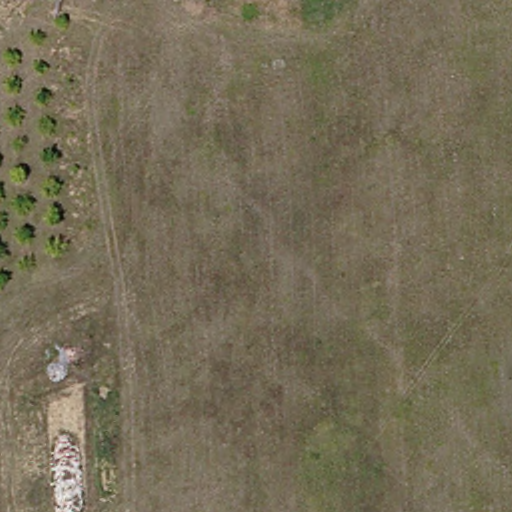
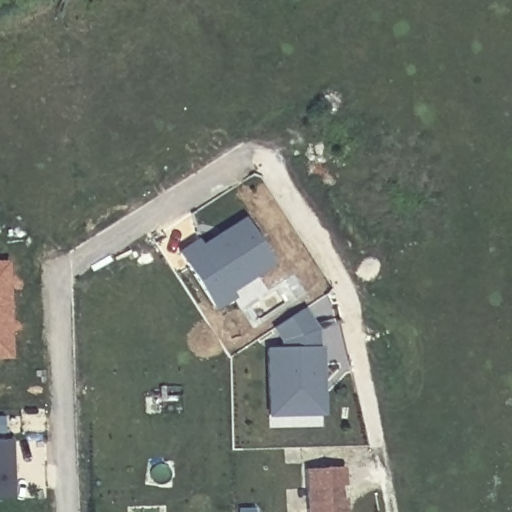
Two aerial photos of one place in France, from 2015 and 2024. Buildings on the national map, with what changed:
new [(193,244),(198,251),(241,223),(269,267),(253,278),(264,294),(236,313),(228,301),(211,312),(176,256),(193,244)]
new [(0,358),(0,261),(8,261),(11,358),(0,358)]
new [(317,330),(316,351),(279,352),(279,340),(271,328),(303,309),(317,330)]
new [(264,400),(264,352),(316,351),(317,368),(318,394),(318,417),(282,417),(264,418),(264,400)]
new [(10,500),(0,500),(0,442),(9,442),(10,500)]
new [(344,489),(340,489),(340,502),(346,502),(346,510),(346,512),(307,512),(305,472),(344,471),(344,489)]

